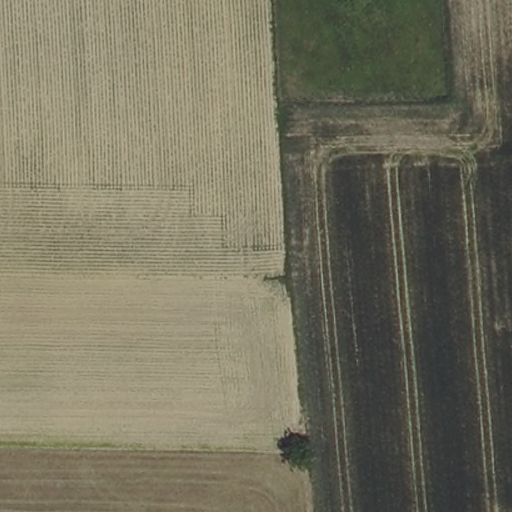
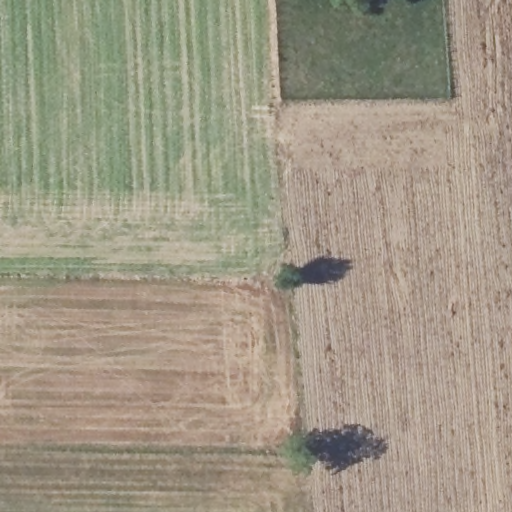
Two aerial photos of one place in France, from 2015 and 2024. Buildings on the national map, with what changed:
[]

